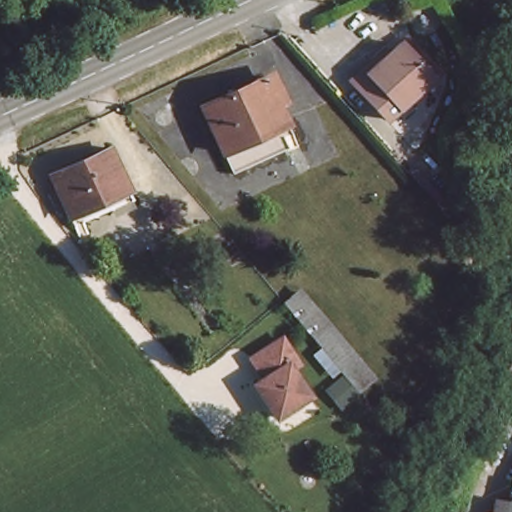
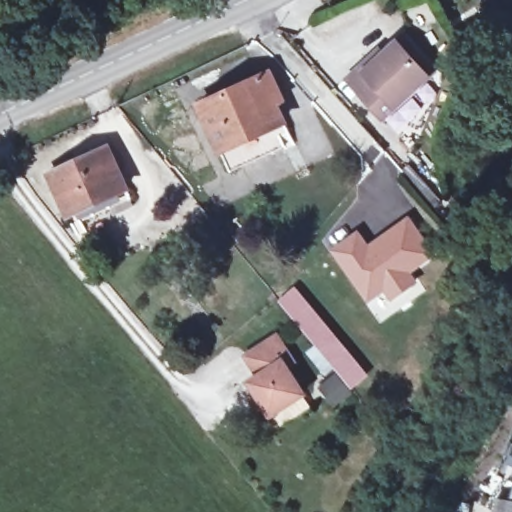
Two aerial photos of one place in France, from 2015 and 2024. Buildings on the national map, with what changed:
unchanged [(343,79),(362,61),(364,53),(376,42),(385,49),(396,38),(413,55),(426,69),(419,77),(378,115),(343,79)]
unchanged [(287,150),(265,159),(231,174),(198,105),(264,75),(286,121),(275,125),(287,150)]
unchanged [(121,189),(64,215),(45,173),(102,147),(121,189)]
new [(358,228),(369,242),(408,213),(437,254),(413,272),(420,281),(390,301),(383,292),(367,304),(328,249),(358,228)]
unchanged [(343,378),(281,302),(292,294),(355,369),(343,378)]
unchanged [(250,383),(265,373),(262,368),(255,371),(247,358),(277,339),(293,364),(286,369),(303,396),(271,416),(250,383)]
unchanged [(512,505),(508,504),(512,493),(512,505)]
unchanged [(508,504),(512,505),(512,512),(493,512),(495,502),(508,504)]

